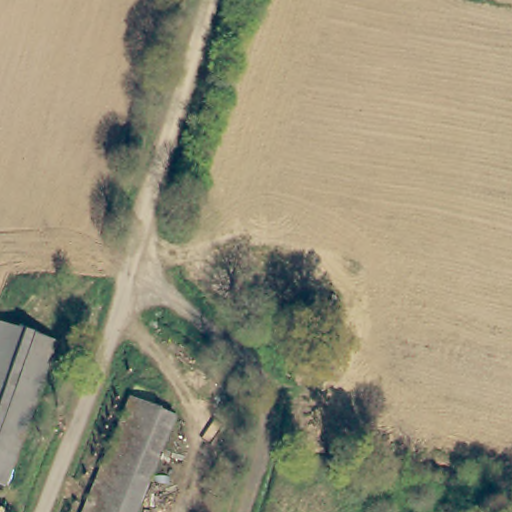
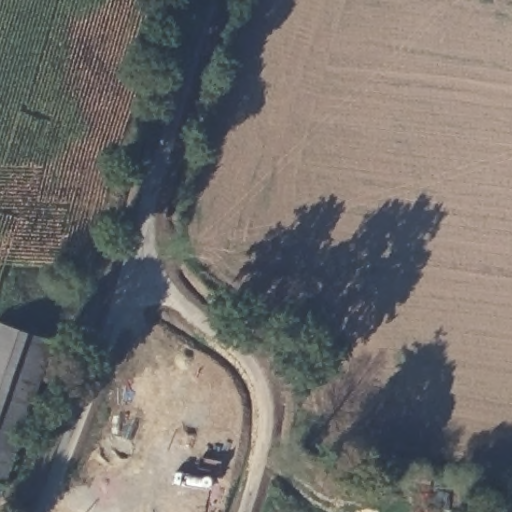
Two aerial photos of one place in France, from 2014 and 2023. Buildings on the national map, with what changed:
unchanged [(1,485),(0,485),(0,321),(53,340),(1,485)]
demolished [(161,408),(120,512),(84,512),(129,397),(161,408)]

